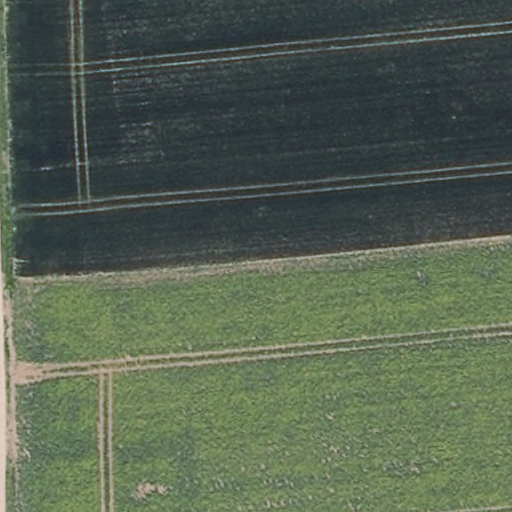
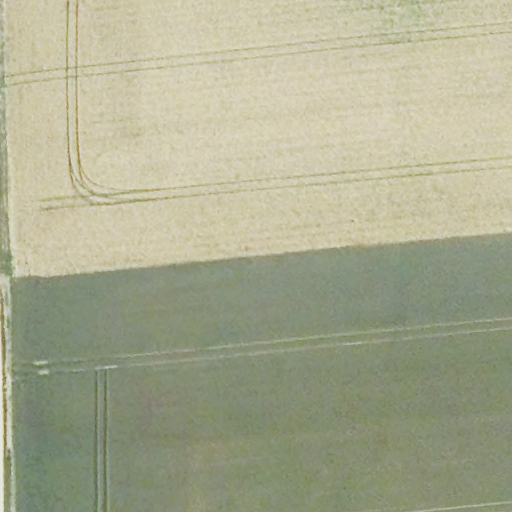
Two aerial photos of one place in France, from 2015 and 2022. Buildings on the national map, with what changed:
[]

